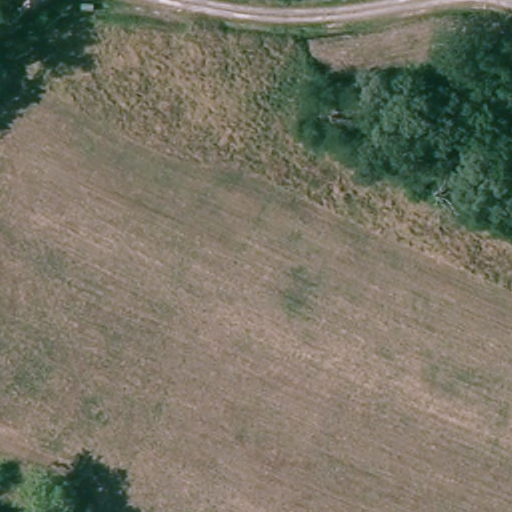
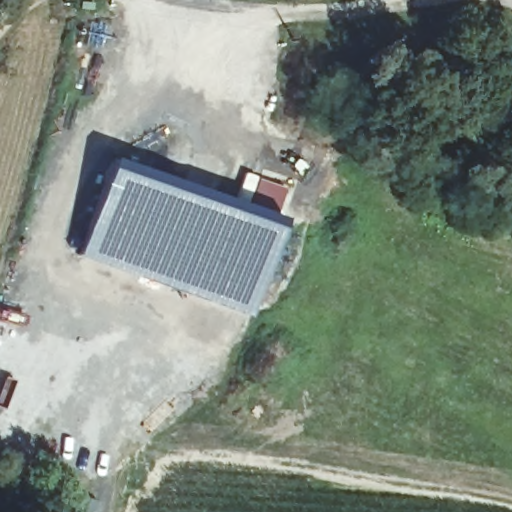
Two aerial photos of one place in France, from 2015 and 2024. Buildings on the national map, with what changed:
demolished [(134,172),(122,190),(99,174),(111,156),(134,172)]
new [(107,169),(112,159),(286,219),(280,231),(250,318),(77,256),(107,169)]

